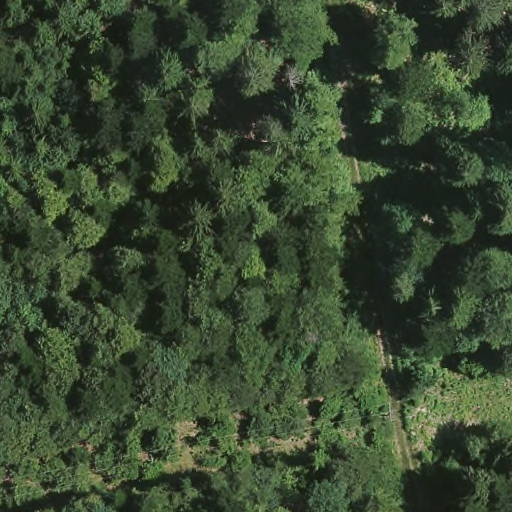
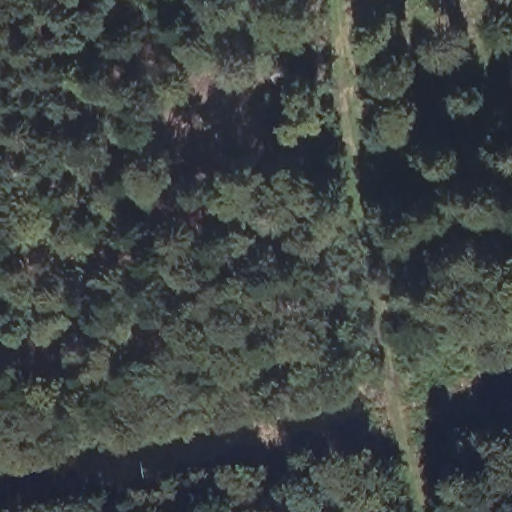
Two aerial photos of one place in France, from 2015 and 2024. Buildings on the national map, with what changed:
[]

